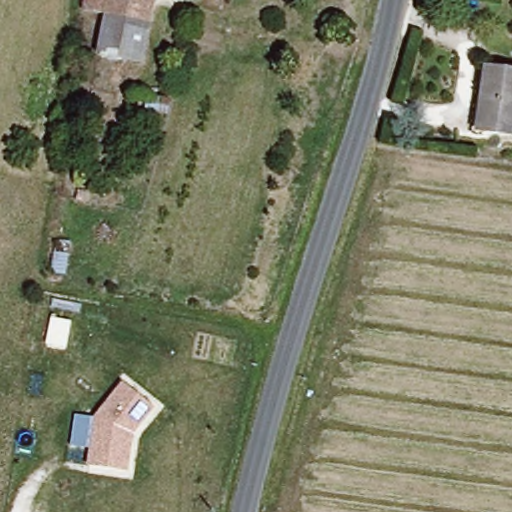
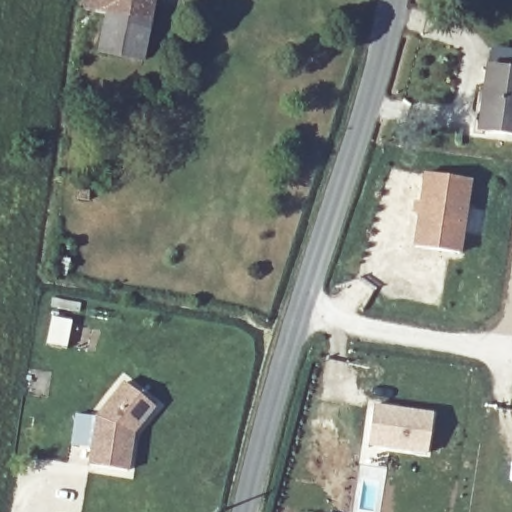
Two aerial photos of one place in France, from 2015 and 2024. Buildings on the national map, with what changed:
unchanged [(144,61),(99,55),(106,14),(85,8),(87,0),(157,0),(144,61)]
unchanged [(512,127),(474,122),(478,80),(490,81),(493,65),(512,68),(512,127)]
new [(461,254),(409,246),(421,173),(471,180),(461,254)]
unchanged [(153,406),(132,433),(127,470),(85,465),(93,417),(119,381),(153,406)]
new [(373,402),(434,412),(428,456),(366,445),(373,402)]

